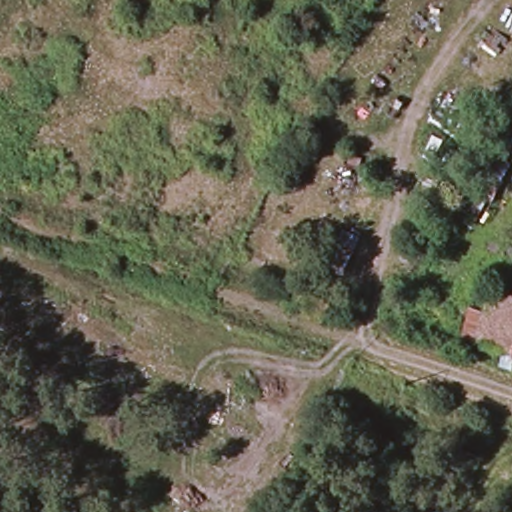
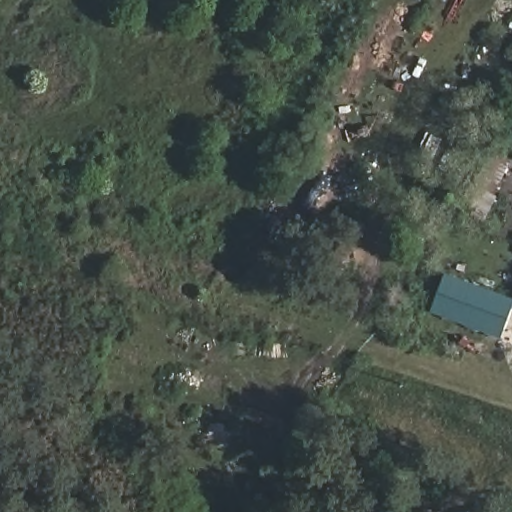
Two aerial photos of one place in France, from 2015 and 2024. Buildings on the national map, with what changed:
new [(512,298),(512,312),(502,338),(431,312),(445,273),(512,298)]
demolished [(471,346),(489,293),(512,302),(512,360),(471,346)]

